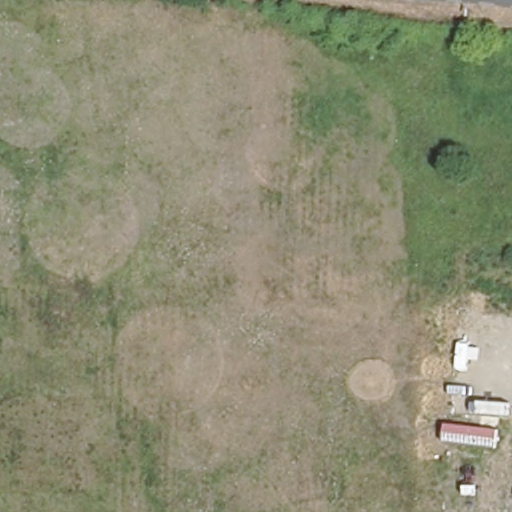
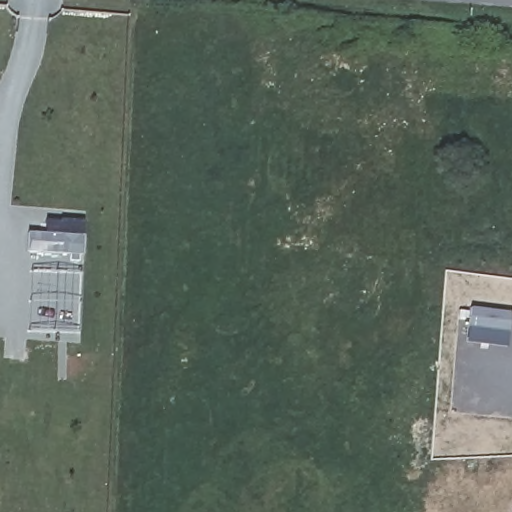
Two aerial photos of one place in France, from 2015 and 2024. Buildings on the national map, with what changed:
new [(45,219),(82,221),(81,255),(27,252),(29,230),(45,231),(45,219)]
new [(467,341),(471,307),(511,312),(507,346),(467,341)]

